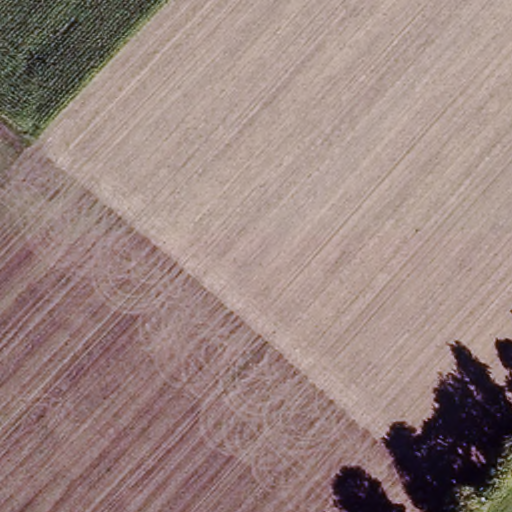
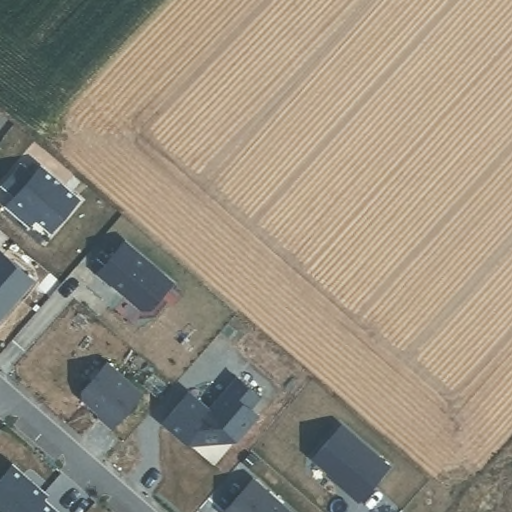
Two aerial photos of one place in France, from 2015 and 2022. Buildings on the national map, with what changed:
new [(20,162),(33,173),(41,164),(79,196),(51,229),(26,207),(20,215),(6,203),(15,193),(3,182),(20,162)]
new [(123,242),(171,283),(149,309),(140,309),(109,283),(108,284),(96,274),(123,242)]
new [(31,280),(0,316),(0,253),(31,280)]
new [(79,390),(104,362),(139,393),(110,425),(96,415),(97,414),(79,397),(79,390)]
new [(187,390),(209,406),(236,375),(258,394),(249,404),(258,412),(236,436),(187,440),(162,418),(187,390)]
new [(340,424),(387,465),(359,497),(311,456),(340,424)]
new [(44,492),(40,496),(54,509),(52,512),(4,512),(0,509),(0,476),(10,463),(44,492)]
new [(295,512),(227,512),(224,510),(254,476),(295,512)]

